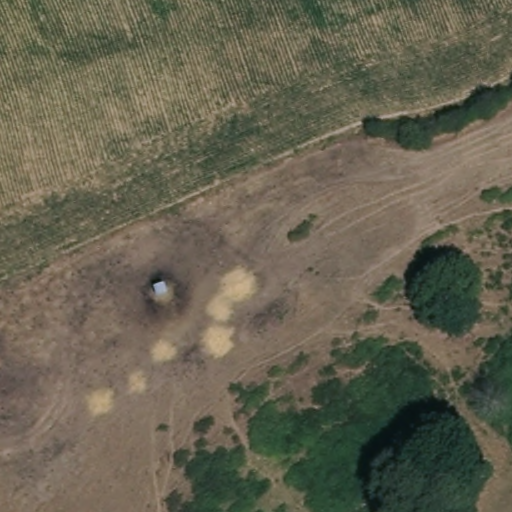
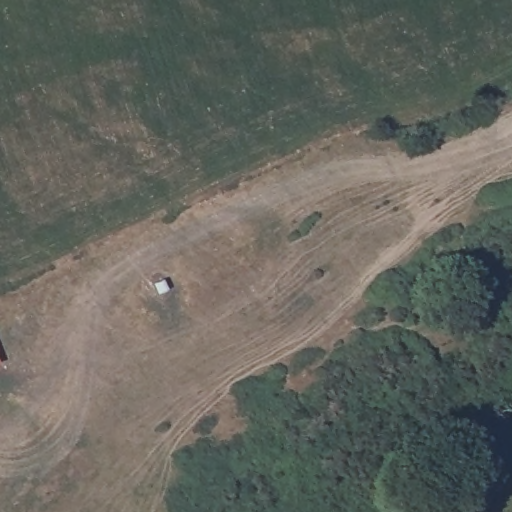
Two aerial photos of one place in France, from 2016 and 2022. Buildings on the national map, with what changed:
unchanged [(0,368),(0,361),(2,367),(0,368)]

